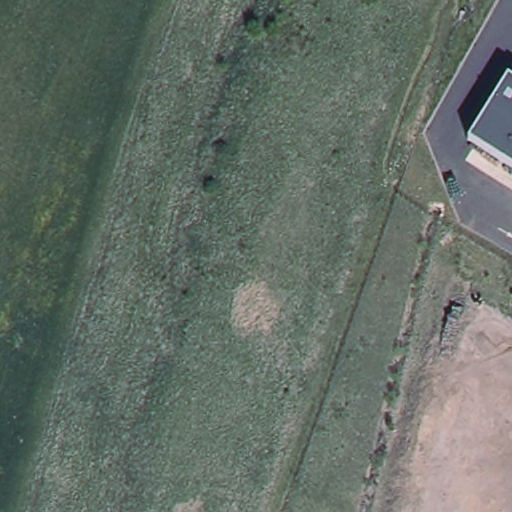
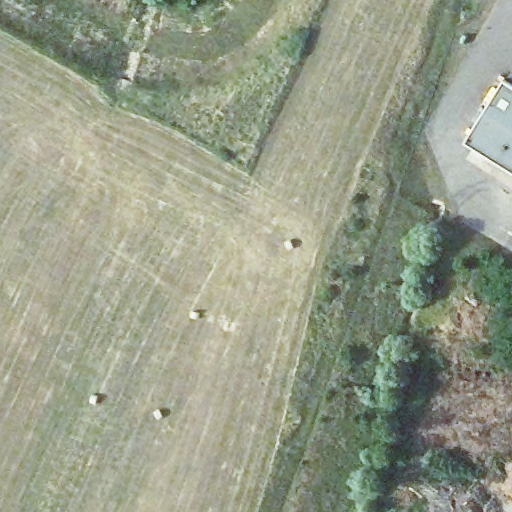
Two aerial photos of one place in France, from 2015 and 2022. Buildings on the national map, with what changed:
unchanged [(470,142),(508,78),(512,80),(512,168),(470,142)]

